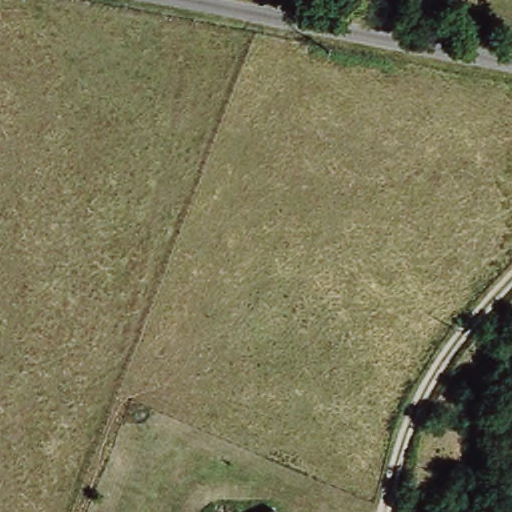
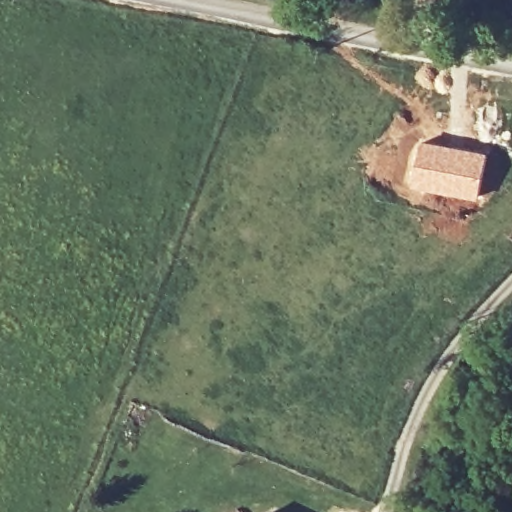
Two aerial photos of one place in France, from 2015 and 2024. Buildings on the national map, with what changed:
new [(420,140),(488,152),(478,201),(411,188),(420,140)]

